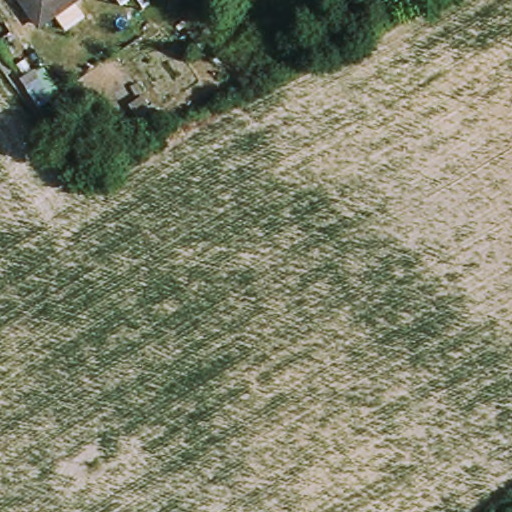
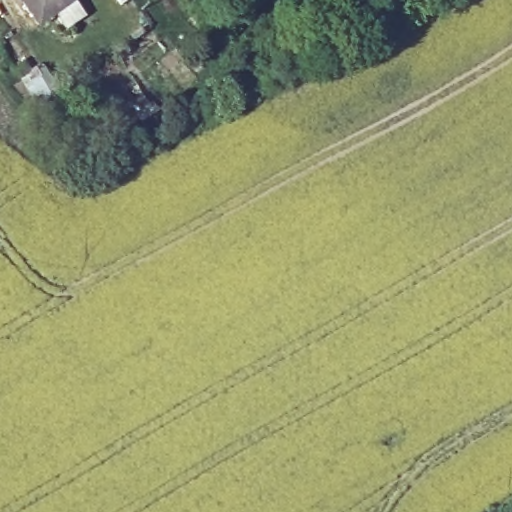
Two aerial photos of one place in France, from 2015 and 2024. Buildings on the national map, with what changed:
unchanged [(20,0),(74,0),(40,25),(20,0)]

